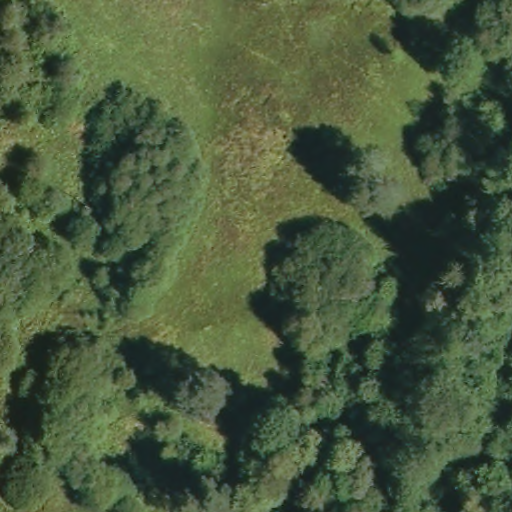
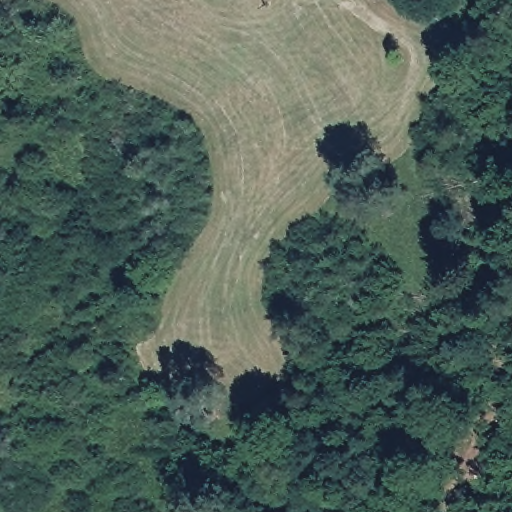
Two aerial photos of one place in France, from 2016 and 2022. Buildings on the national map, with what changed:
[]

